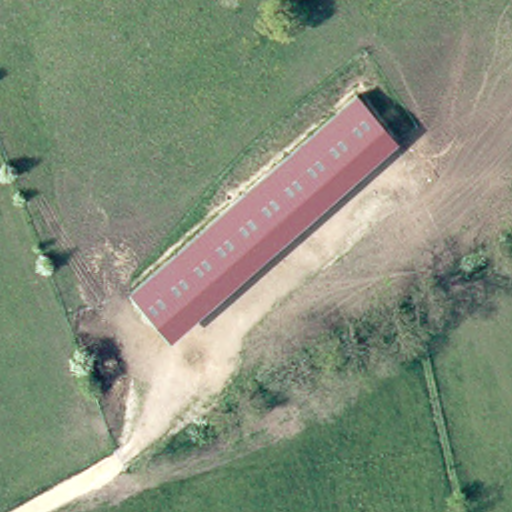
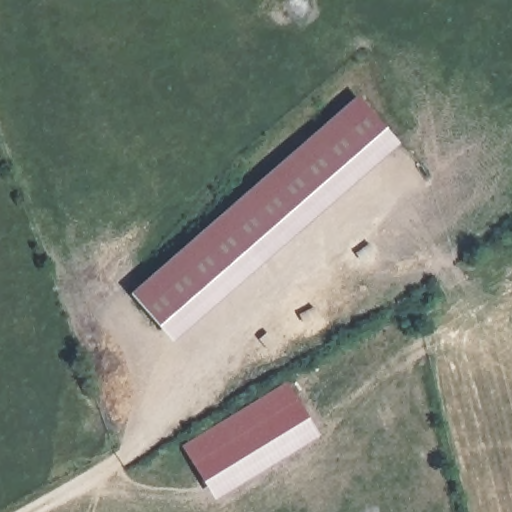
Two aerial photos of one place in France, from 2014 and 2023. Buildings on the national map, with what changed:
unchanged [(400,145),(173,344),(130,293),(356,95),(400,145)]
new [(180,444),(284,381),(318,436),(214,499),(180,444)]

